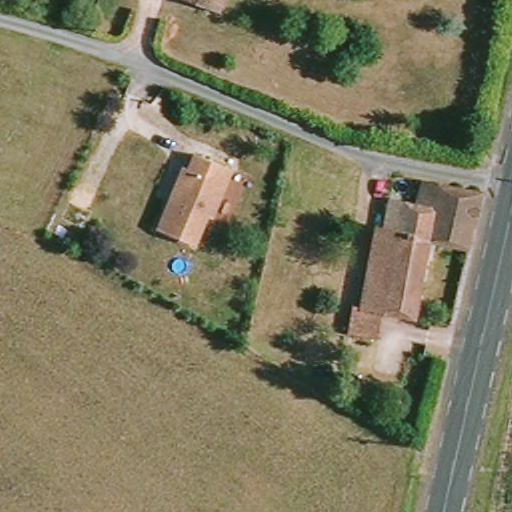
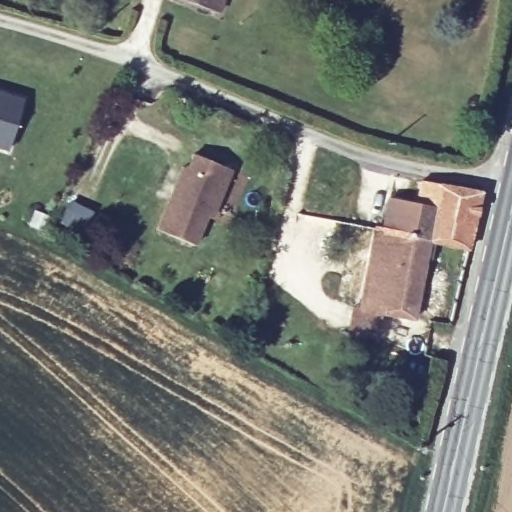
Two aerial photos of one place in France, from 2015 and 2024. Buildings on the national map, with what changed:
unchanged [(219,15),(180,1),(180,0),(225,0),(219,15)]
new [(7,153),(0,151),(0,98),(21,104),(7,153)]
unchanged [(234,170),(200,247),(159,229),(171,201),(186,167),(190,169),(197,154),(234,170)]
unchanged [(349,339),(353,316),(360,317),(375,234),(384,235),(390,205),(415,209),(421,187),(481,198),(480,202),(468,253),(426,246),(412,325),(379,321),(375,344),(349,339)]

